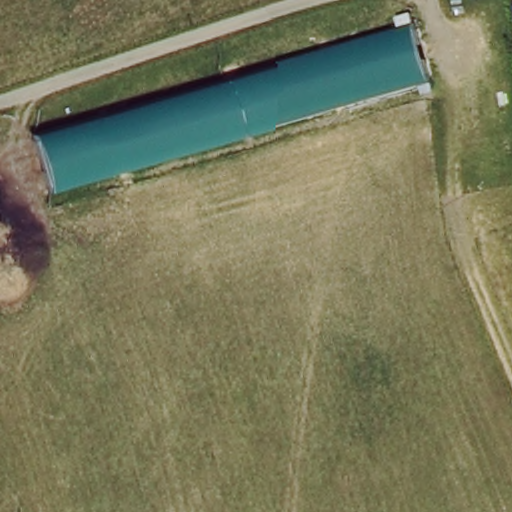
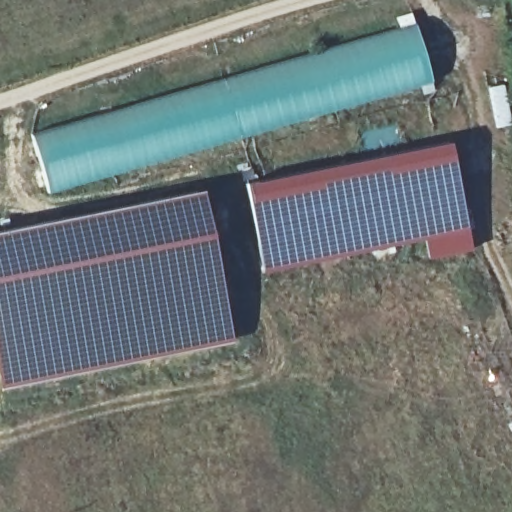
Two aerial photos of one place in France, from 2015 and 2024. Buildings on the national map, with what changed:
unchanged [(33,135),(416,25),(433,83),(50,193),(33,135)]
new [(453,140),(473,246),(427,257),(424,239),(263,271),(247,182),(453,140)]
new [(234,341),(0,389),(0,227),(202,186),(234,341)]

